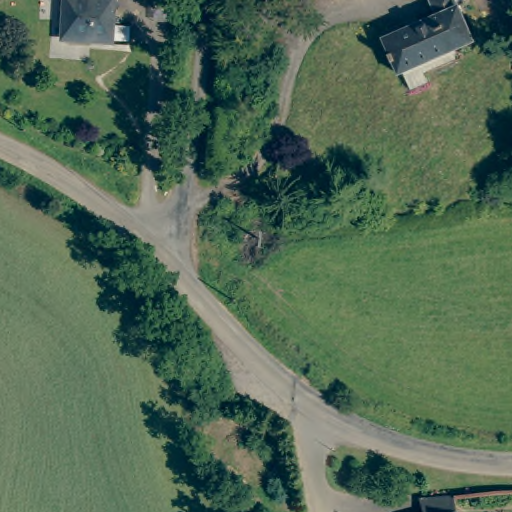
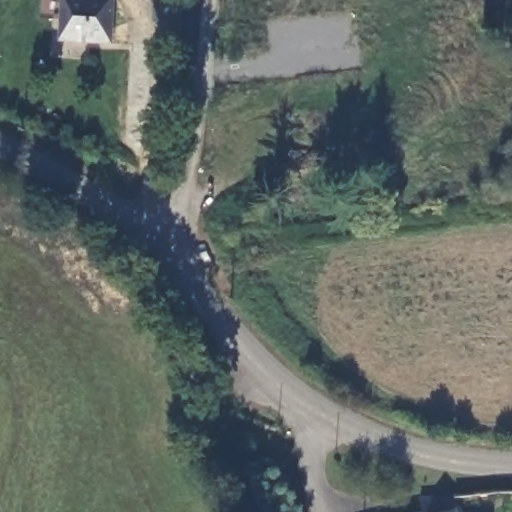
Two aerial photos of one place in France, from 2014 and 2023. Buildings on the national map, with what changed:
unchanged [(112,44),(91,43),(92,41),(65,40),(66,14),(62,14),(62,0),(113,0),(112,44)]
demolished [(395,74),(378,36),(433,15),(427,0),(450,0),(469,42),(449,51),(401,72),(395,74)]
unchanged [(448,495),(452,512),(416,512),(414,498),(448,495)]

